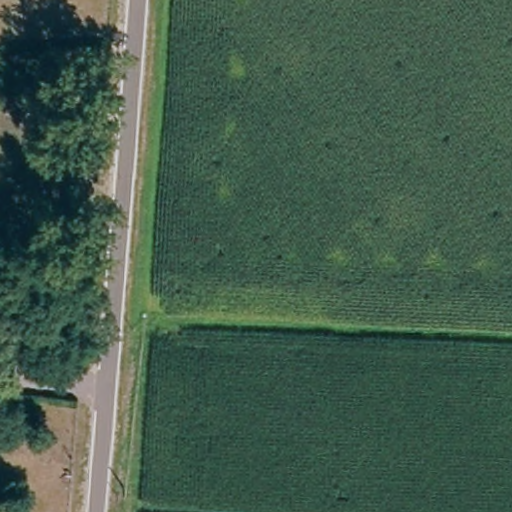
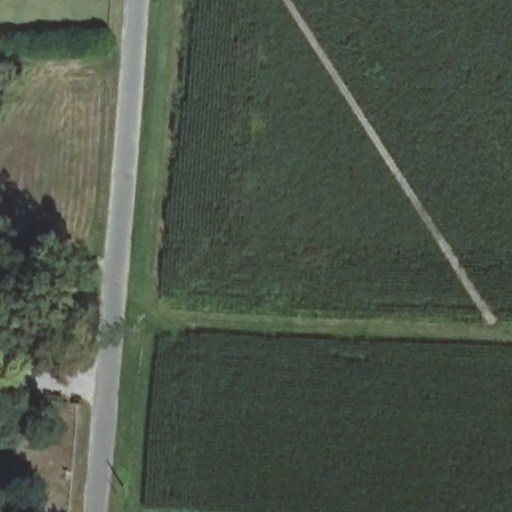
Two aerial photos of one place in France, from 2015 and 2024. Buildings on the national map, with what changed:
[]

